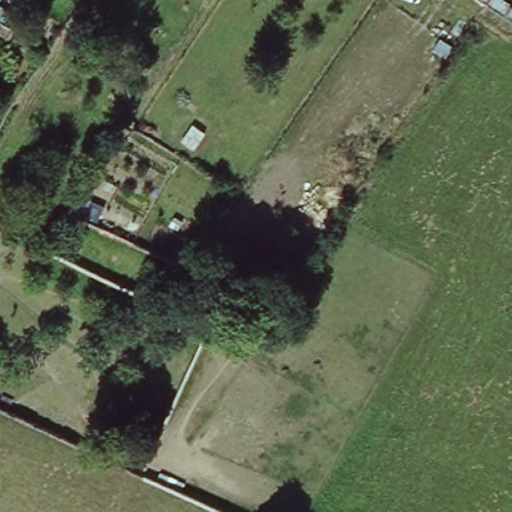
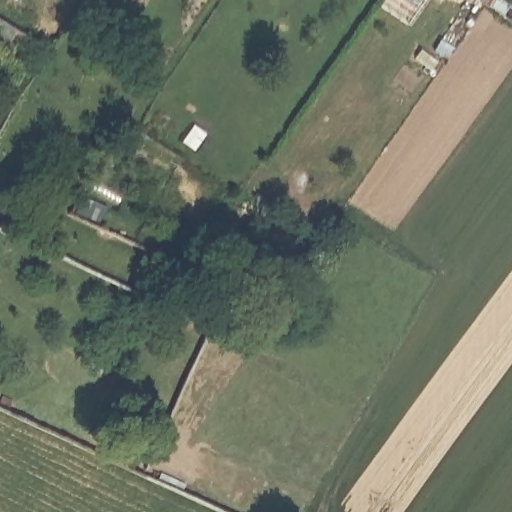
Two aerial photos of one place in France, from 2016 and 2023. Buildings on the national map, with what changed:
[]

